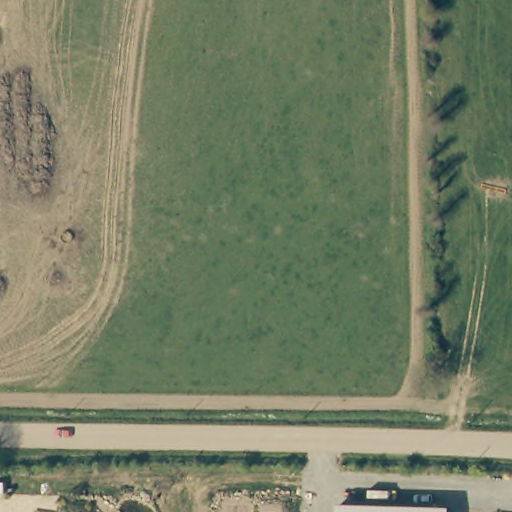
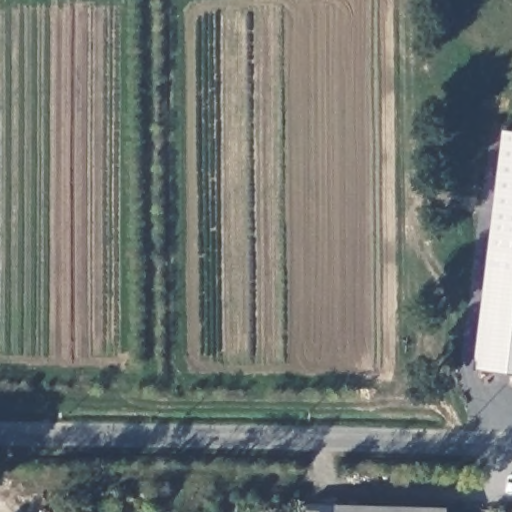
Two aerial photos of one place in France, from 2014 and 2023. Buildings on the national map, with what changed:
new [(512,132),(512,250),(495,249),(506,132),(512,132)]
new [(512,250),(512,366),(483,363),(495,249),(512,250)]
unchanged [(337,504),(448,507),(448,512),(337,512),(337,504)]

